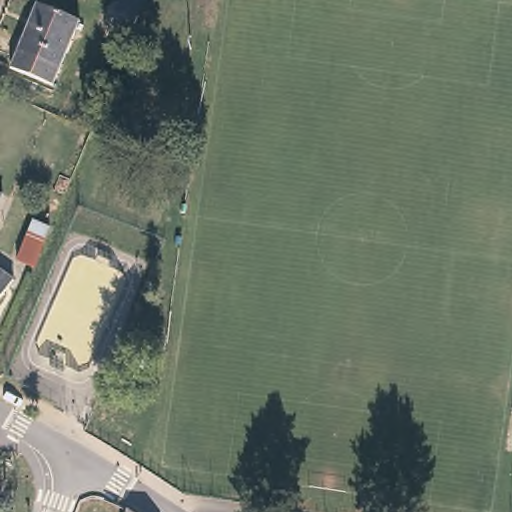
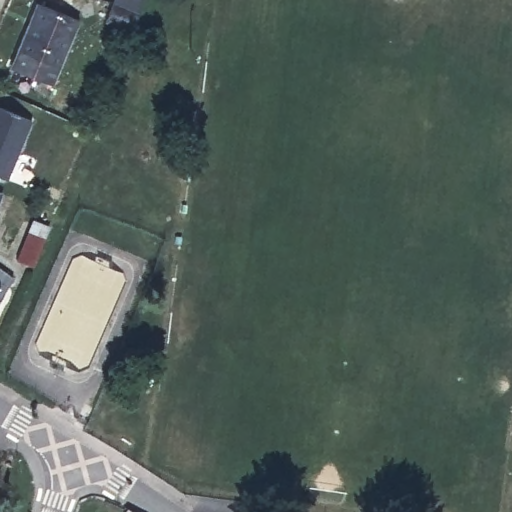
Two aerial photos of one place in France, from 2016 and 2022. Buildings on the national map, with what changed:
unchanged [(136,10),(129,30),(103,19),(110,0),(136,10)]
unchanged [(69,15),(75,17),(50,83),(7,66),(17,43),(34,1),(69,15)]
new [(9,179),(0,176),(0,107),(32,121),(9,179)]
unchanged [(40,235),(30,264),(15,258),(25,229),(40,235)]
unchanged [(0,296),(0,271),(12,280),(0,296)]
unchanged [(126,512),(127,508),(133,512),(126,512)]

